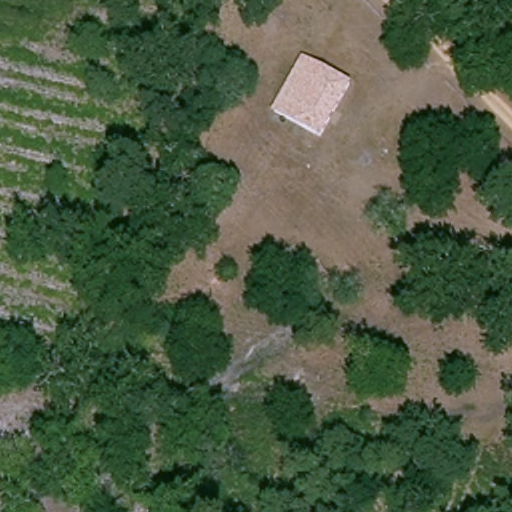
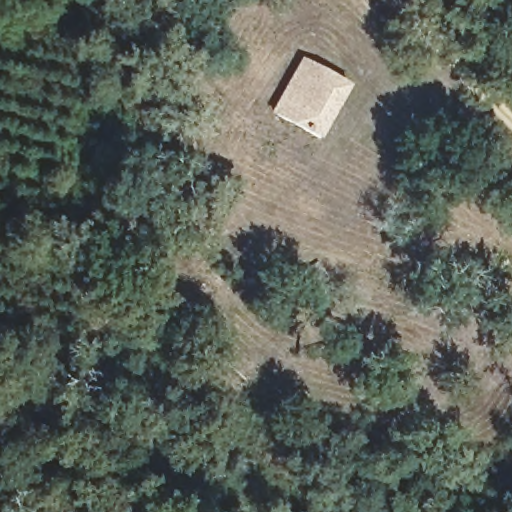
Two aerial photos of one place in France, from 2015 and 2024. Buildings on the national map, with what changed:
unchanged [(322,137),(277,115),(302,65),(305,64),(347,87),(322,137)]
unchanged [(333,286),(323,271),(336,263),(341,272),(345,278),(333,286)]

